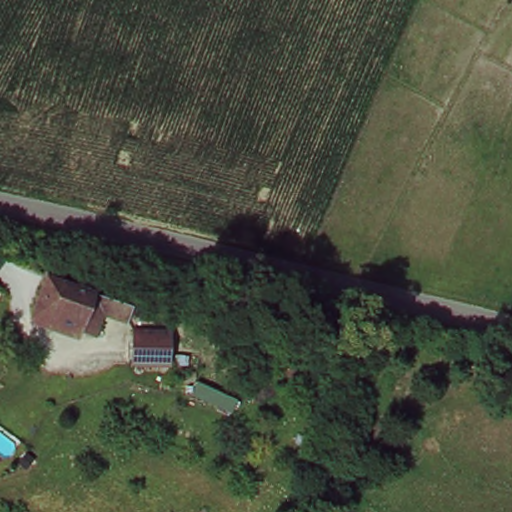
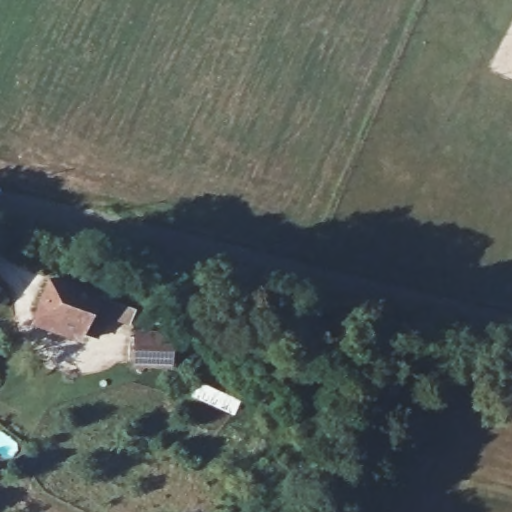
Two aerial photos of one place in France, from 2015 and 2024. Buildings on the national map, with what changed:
unchanged [(80,335),(33,323),(44,285),(129,305),(125,323),(100,317),(95,339),(80,335)]
unchanged [(156,374),(127,356),(144,330),(172,349),(156,374)]

